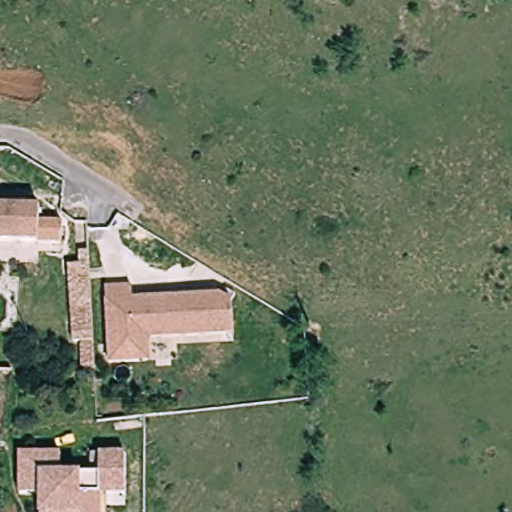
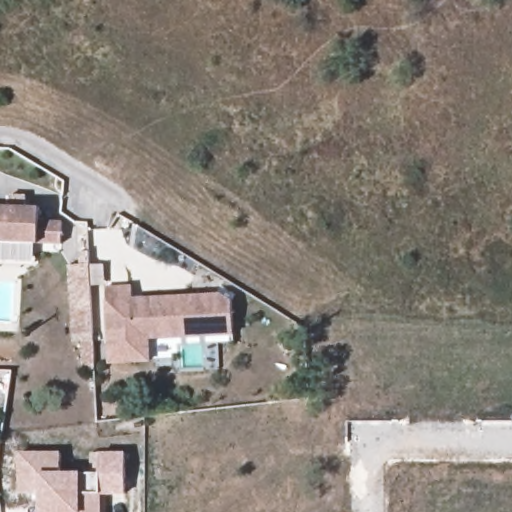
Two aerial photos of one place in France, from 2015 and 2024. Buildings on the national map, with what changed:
unchanged [(42,205),(41,219),(64,221),(63,243),(11,240),(0,239),(0,202),(12,203),(42,205)]
unchanged [(69,341),(70,263),(90,263),(90,287),(89,341),(69,341)]
unchanged [(235,332),(147,337),(148,361),(109,363),(104,285),(132,283),(133,296),(227,291),(227,298),(236,298),(235,332)]
unchanged [(42,491),(22,491),(24,450),(64,452),(63,472),(102,472),(103,452),(129,453),(127,494),(102,493),(102,512),(41,512),(42,511),(42,491)]

